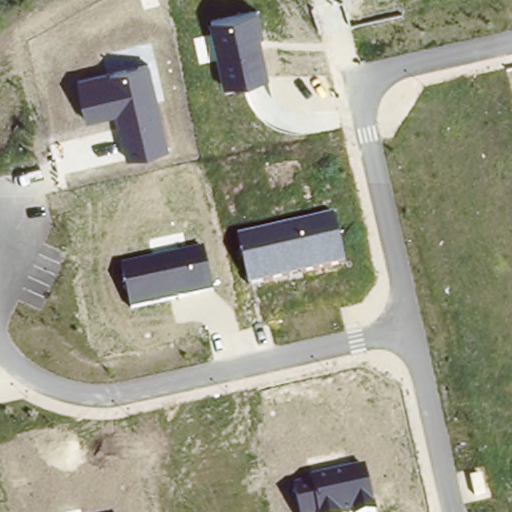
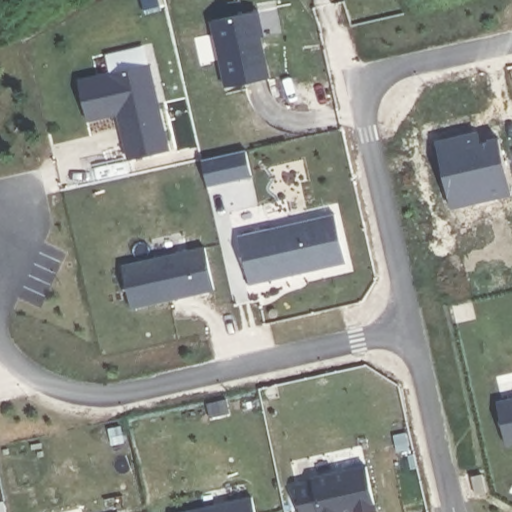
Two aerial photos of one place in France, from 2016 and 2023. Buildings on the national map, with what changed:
unchanged [(211,20),(260,11),(264,35),(260,36),(268,79),(222,87),(211,20)]
unchanged [(117,114),(85,121),(77,76),(150,63),(168,152),(127,160),(117,114)]
new [(482,142),(502,138),(512,196),(450,209),(436,141),(477,131),(482,142)]
new [(202,161),(245,151),(250,178),(206,187),(202,161)]
unchanged [(238,233),(335,212),(345,262),(248,283),(238,233)]
unchanged [(120,262),(203,243),(213,290),(129,307),(120,262)]
new [(512,398),(512,445),(506,446),(495,402),(512,398)]
unchanged [(365,467),(375,512),(301,512),(294,485),(365,467)]
new [(253,512),(183,512),(250,497),(253,512)]

